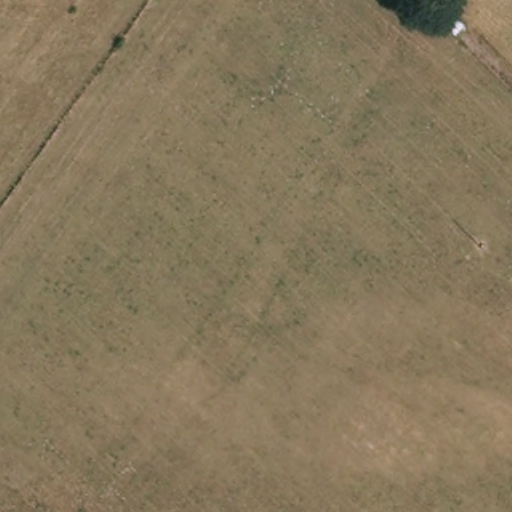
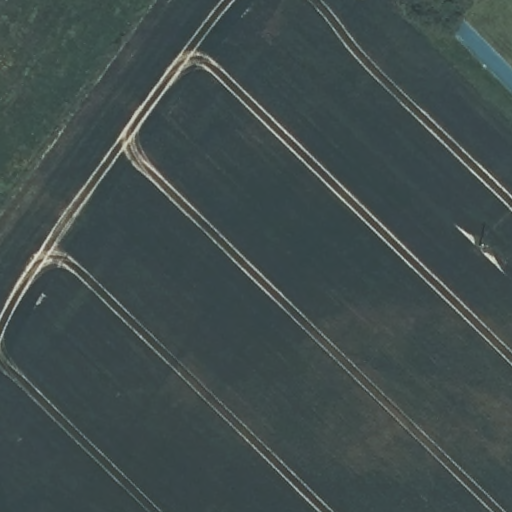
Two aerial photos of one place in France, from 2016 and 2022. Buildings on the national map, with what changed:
[]

